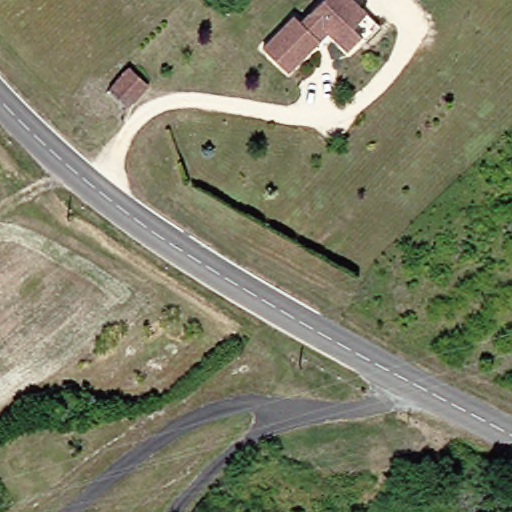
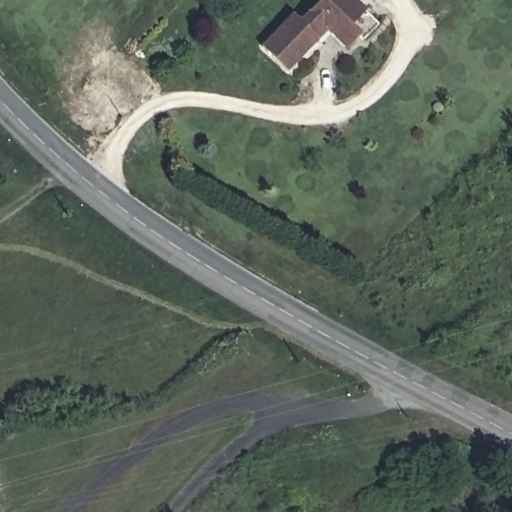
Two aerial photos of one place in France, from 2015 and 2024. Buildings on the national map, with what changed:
unchanged [(298,23),(323,0),(346,0),(375,30),(358,46),(352,43),(340,54),(321,36),(283,69),(260,45),(292,15),(298,23)]
unchanged [(136,66),(152,86),(128,108),(112,88),(136,66)]

